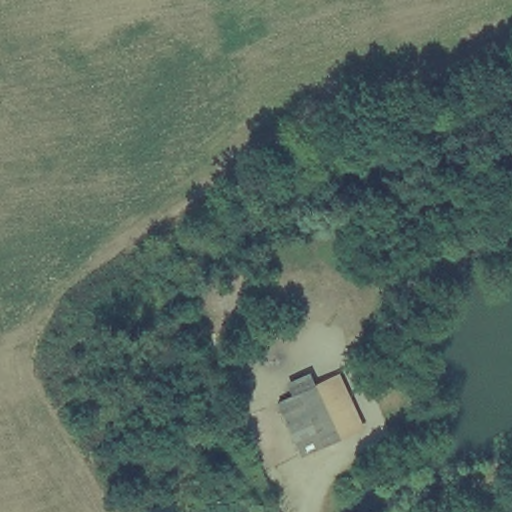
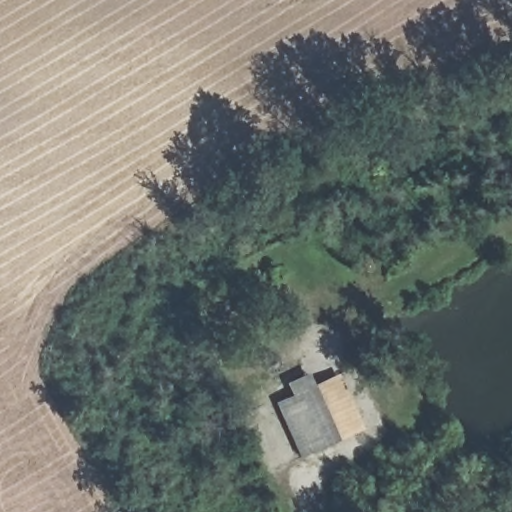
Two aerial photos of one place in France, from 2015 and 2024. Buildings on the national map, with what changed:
unchanged [(363,427),(302,454),(281,399),(291,395),(286,382),(311,372),(316,382),(339,372),(363,427)]

